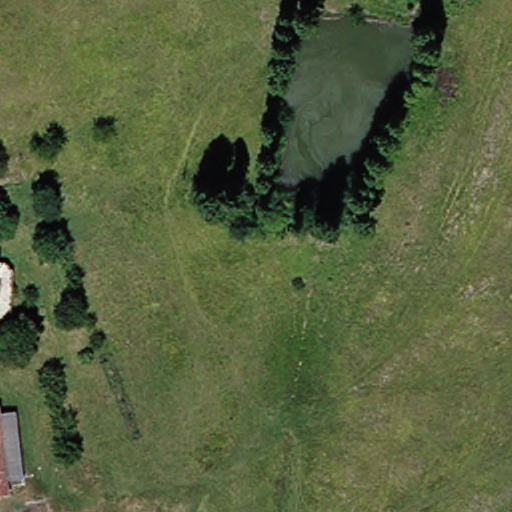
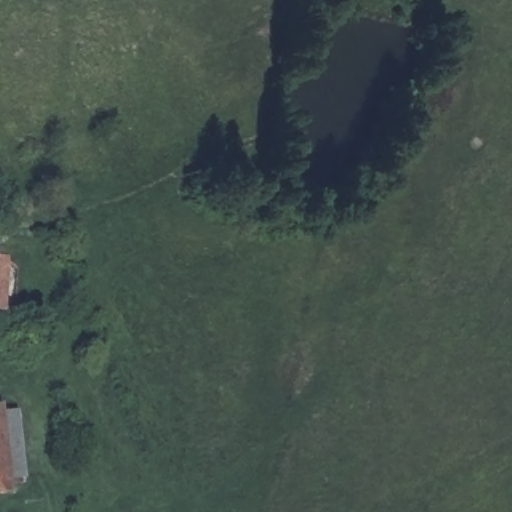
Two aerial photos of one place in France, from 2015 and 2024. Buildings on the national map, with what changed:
unchanged [(4,259),(6,315),(0,314),(0,259),(4,259)]
unchanged [(8,406),(10,413),(14,475),(15,485),(0,486),(0,407),(8,406)]
unchanged [(14,475),(10,413),(27,413),(30,473),(14,475)]

